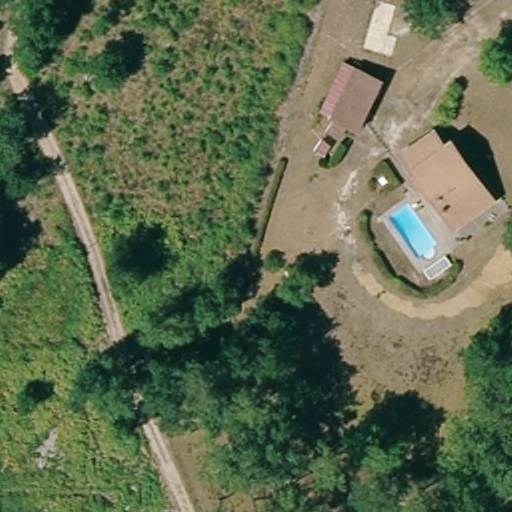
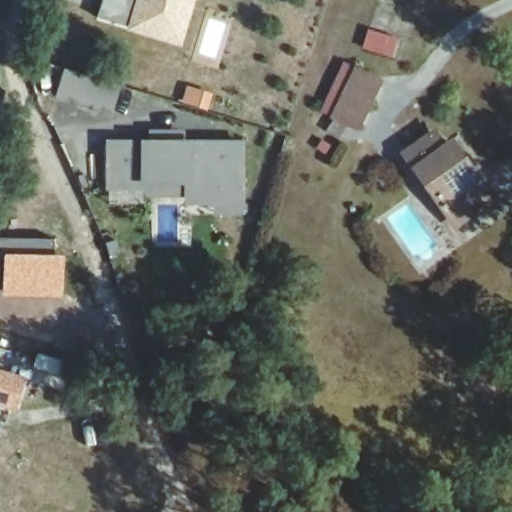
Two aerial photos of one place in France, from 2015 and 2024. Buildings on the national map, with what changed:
new [(182,47),(126,30),(127,25),(99,16),(104,0),(196,0),(182,47)]
unchanged [(331,116),(338,100),(327,93),(340,67),(352,73),(353,69),(377,81),(355,128),(331,116)]
new [(55,98),(64,68),(122,84),(111,114),(55,98)]
unchanged [(457,221),(452,212),(407,150),(437,129),(447,144),(450,141),(454,139),(475,168),(488,187),(493,195),(457,221)]
new [(140,139),(193,139),(246,140),(245,214),(215,214),(215,206),(185,207),(185,197),(147,198),(147,190),(107,190),(107,139),(140,139)]
new [(52,253),(2,252),(2,257),(0,257),(0,237),(54,238),(52,253)]
new [(2,257),(2,252),(52,253),(64,253),(64,297),(2,296),(2,257)]
new [(36,353),(66,362),(62,378),(32,368),(36,353)]
new [(16,409),(0,405),(0,370),(26,377),(16,409)]

